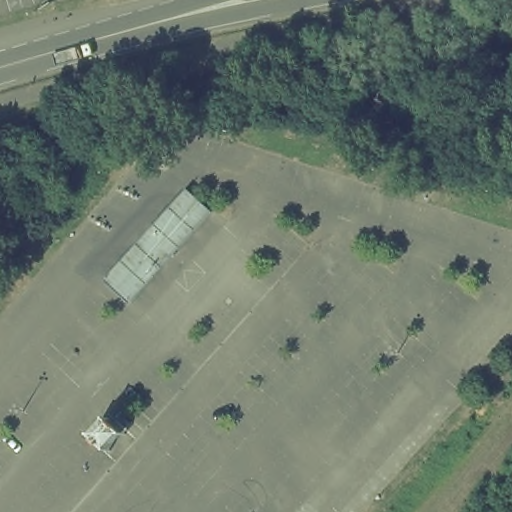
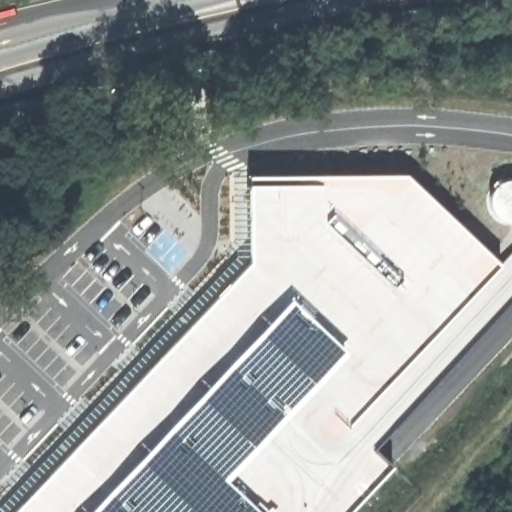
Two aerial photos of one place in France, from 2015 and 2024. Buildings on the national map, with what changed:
new [(253,263),(254,178),(413,176),(497,261),(512,277),(512,312),(327,512),(16,512),(253,263)]
new [(490,196),(491,193),(492,190),(494,188),(496,186),(498,184),(500,183),(502,182),(505,181),(508,180),(510,180),(512,180),(512,222),(510,222),(508,222),(505,221),(502,220),(500,219),(498,218),(495,216),(494,214),(492,211),(491,209),(490,206),(490,204),(490,201),(490,198),(490,196)]
demolished [(111,280),(190,190),(220,215),(138,300),(111,280)]

